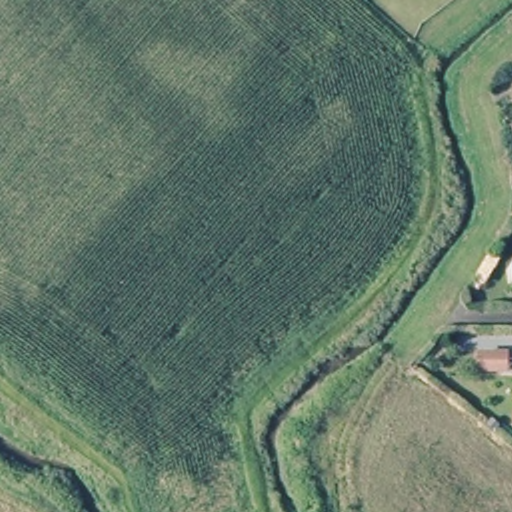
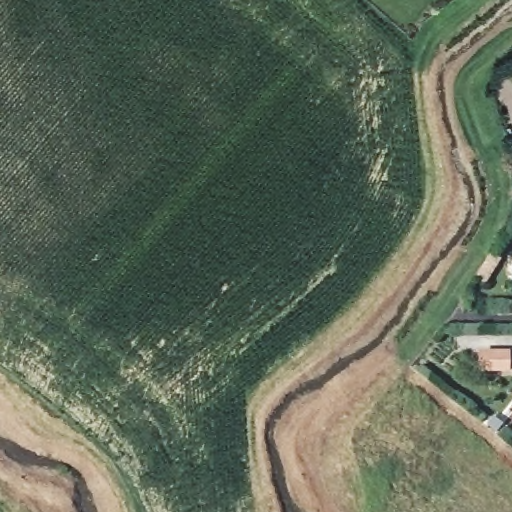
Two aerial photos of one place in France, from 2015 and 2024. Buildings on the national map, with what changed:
unchanged [(495,240),(505,246),(491,267),(482,261),(495,240)]
unchanged [(485,337),(512,337),(512,354),(486,354),(485,337)]
unchanged [(493,426),(485,420),(490,414),(498,420),(493,426)]

